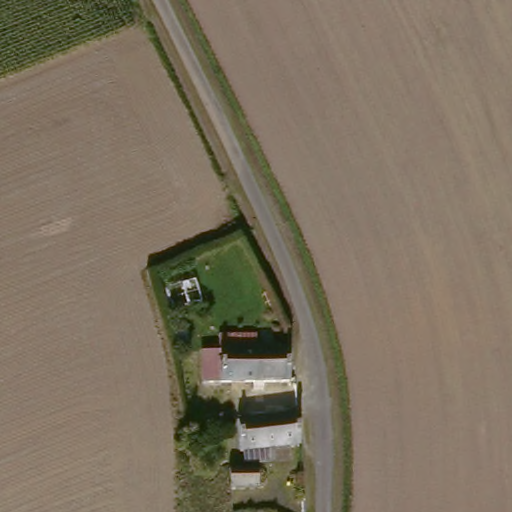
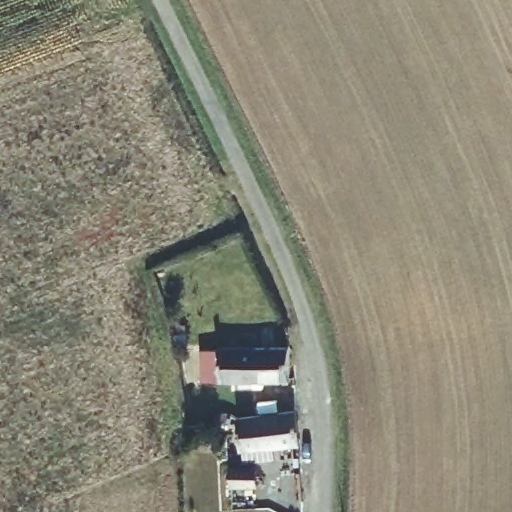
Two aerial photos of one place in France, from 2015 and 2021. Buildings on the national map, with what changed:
unchanged [(296,350),(297,380),(226,383),(225,364),(209,365),(208,354),(225,353),(263,351),(296,350)]
unchanged [(306,412),(309,442),(283,444),(283,458),(253,461),(248,424),(248,420),(306,412)]
unchanged [(239,414),(240,425),(228,425),(226,415),(239,414)]
unchanged [(265,470),(266,486),(241,488),(239,472),(265,470)]

